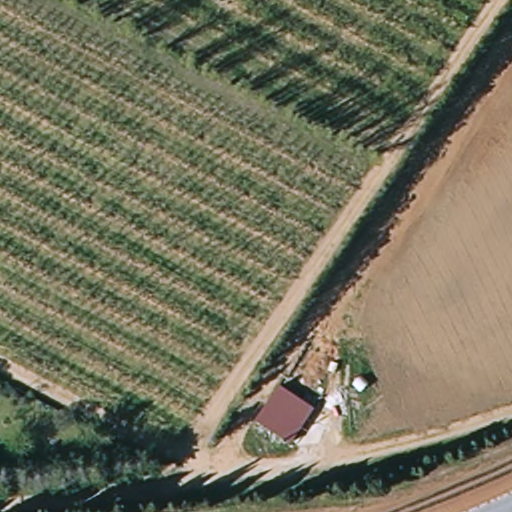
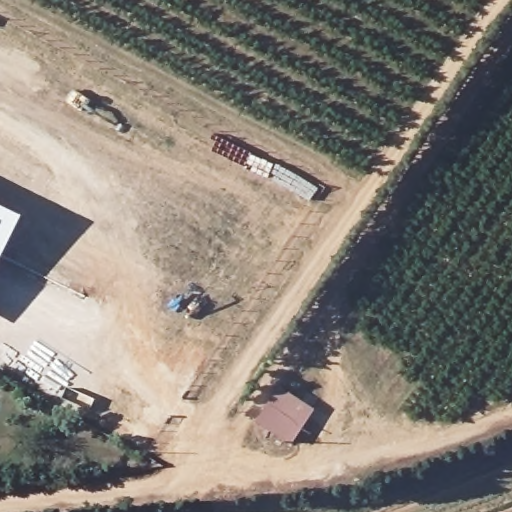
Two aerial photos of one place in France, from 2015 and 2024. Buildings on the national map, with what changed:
new [(0,252),(0,212),(16,220),(0,252)]
unchanged [(278,387),(314,412),(290,445),(254,422),(278,387)]

